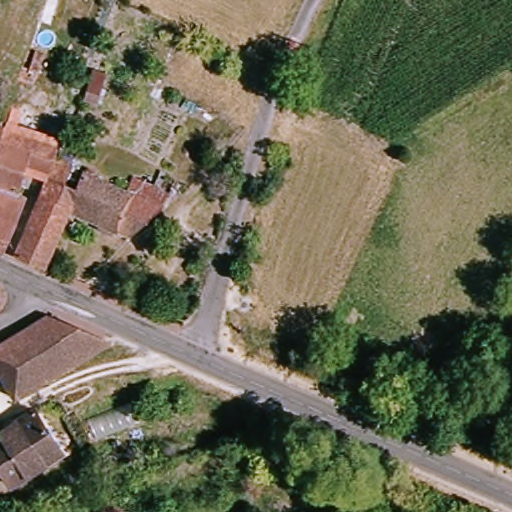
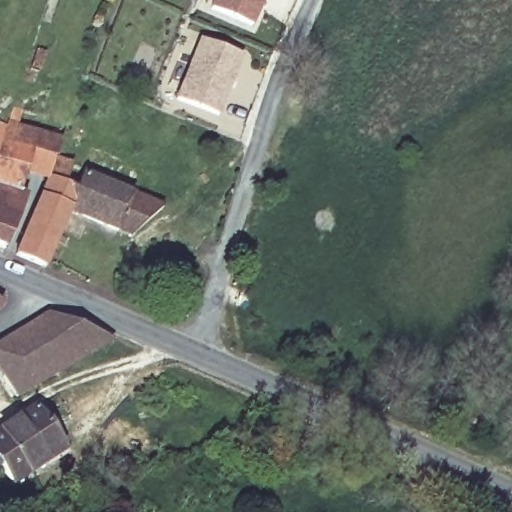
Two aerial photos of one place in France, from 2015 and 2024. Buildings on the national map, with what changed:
new [(214,5),(217,0),(265,0),(254,22),(214,5)]
new [(217,112),(177,95),(202,36),(242,53),(217,112)]
unchanged [(14,135),(18,126),(43,135),(28,176),(22,197),(30,200),(9,250),(0,246),(0,174),(14,135)]
unchanged [(14,135),(0,174),(0,129),(14,135)]
unchanged [(22,259),(18,256),(28,230),(34,233),(51,184),(28,176),(43,135),(67,145),(61,162),(91,174),(88,180),(108,187),(94,222),(74,214),(63,244),(51,272),(22,259)]
unchanged [(139,242),(94,222),(108,187),(171,215),(139,242)]
unchanged [(115,275),(129,275),(129,283),(115,287),(115,275)]
unchanged [(2,306),(0,308),(0,305),(2,306)]
unchanged [(49,315),(111,340),(104,346),(19,400),(0,370),(0,345),(49,315)]
unchanged [(0,452),(0,451),(0,433),(38,411),(45,422),(63,452),(19,480),(0,452)]

